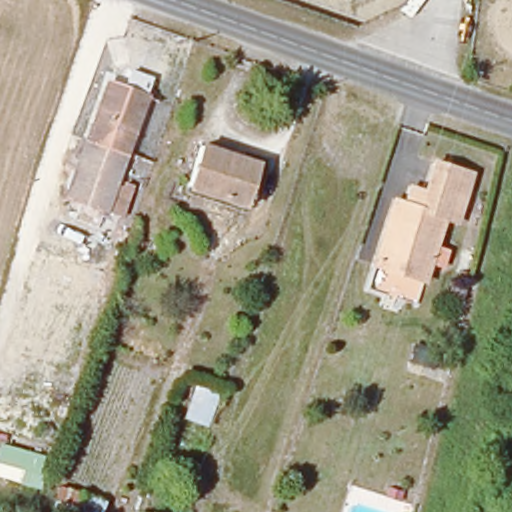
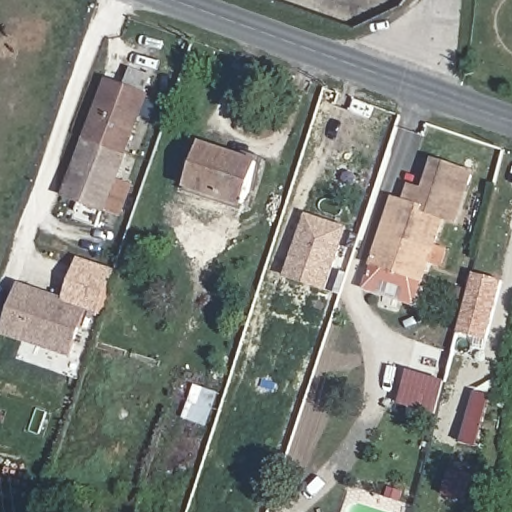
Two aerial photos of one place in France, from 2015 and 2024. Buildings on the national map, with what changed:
unchanged [(141,97),(113,185),(125,191),(116,217),(63,195),(104,82),(141,97)]
unchanged [(252,169),(237,207),(185,187),(198,151),(252,169)]
unchanged [(417,195),(428,167),(467,183),(431,289),(370,266),(379,242),(392,203),(402,209),(409,191),(417,195)]
new [(306,213),(346,226),(325,286),(286,273),(306,213)]
new [(79,258),(117,270),(101,319),(88,315),(91,306),(64,298),(79,258)]
new [(472,272),(501,280),(485,339),(456,332),(472,272)]
demolished [(68,279),(60,301),(50,297),(57,274),(68,279)]
new [(74,360),(4,336),(20,284),(91,306),(74,360)]
new [(446,382),(437,415),(399,404),(409,371),(446,382)]
unchanged [(191,387),(214,396),(203,428),(183,420),(191,387)]
unchanged [(94,512),(78,512),(70,509),(69,512),(52,512),(59,490),(98,502),(94,512)]

